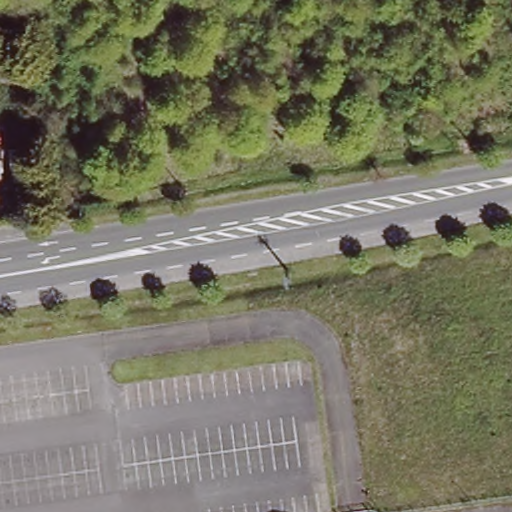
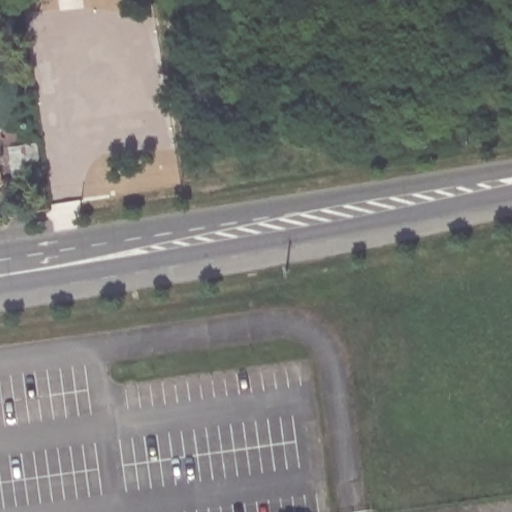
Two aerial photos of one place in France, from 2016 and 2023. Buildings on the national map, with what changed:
unchanged [(10,145),(35,141),(40,170),(15,174),(10,145)]

